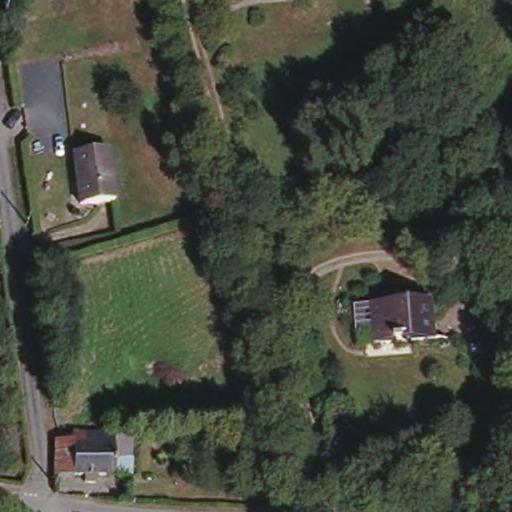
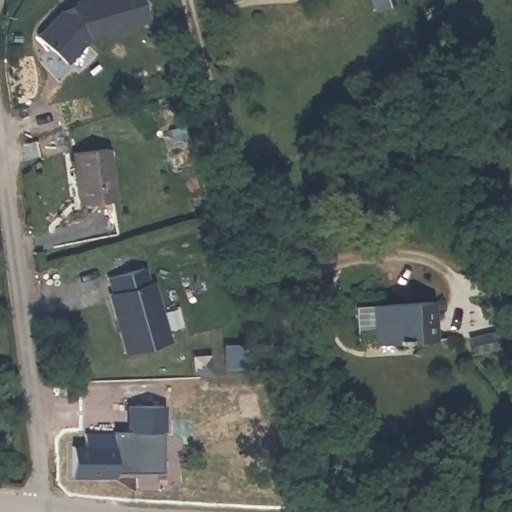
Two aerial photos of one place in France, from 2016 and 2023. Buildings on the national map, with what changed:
new [(41,34),(71,5),(87,0),(143,0),(149,24),(91,40),(69,65),(41,34)]
unchanged [(110,145),(116,195),(80,199),(73,151),(110,145)]
new [(106,292),(114,290),(110,280),(146,270),(151,284),(156,282),(172,338),(125,353),(106,292)]
unchanged [(432,298),(437,331),(378,338),(375,304),(432,298)]
unchanged [(121,429),(122,474),(71,476),(72,430),(121,429)]

